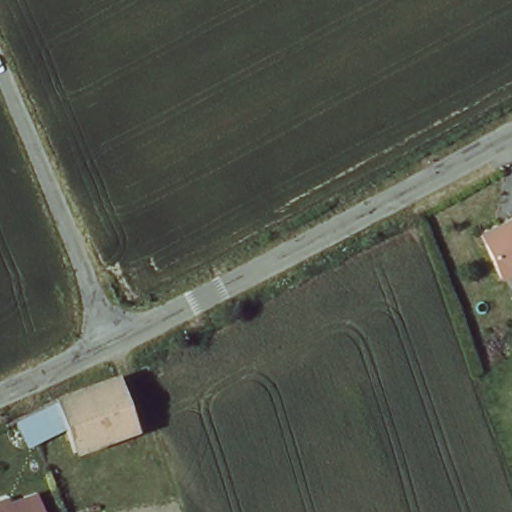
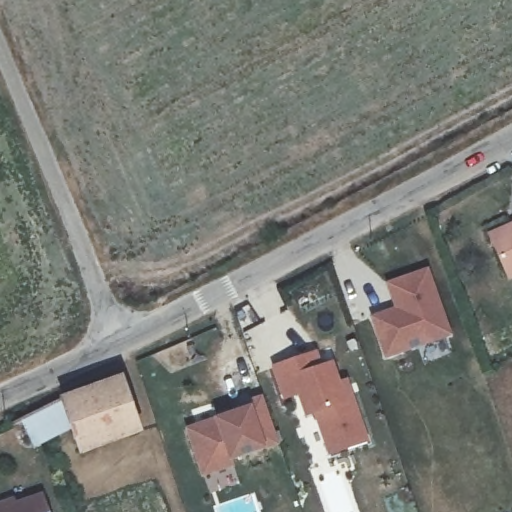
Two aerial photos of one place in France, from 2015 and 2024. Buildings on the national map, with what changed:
unchanged [(512,275),(505,279),(489,245),(512,234),(512,275)]
new [(394,309),(385,282),(427,267),(452,337),(384,359),(369,317),(394,309)]
new [(317,352),(321,365),(333,362),(340,381),(347,379),(368,443),(328,457),(314,416),(305,419),(298,398),(283,403),(271,367),(317,352)]
unchanged [(21,421),(33,416),(63,404),(61,401),(121,378),(140,432),(81,454),(70,426),(41,436),(29,441),(21,421)]
new [(215,420),(246,407),(244,401),(262,394),(278,445),(264,449),(233,461),(235,467),(204,479),(185,428),(215,420)]
unchanged [(39,490),(46,512),(0,512),(0,505),(39,490)]

